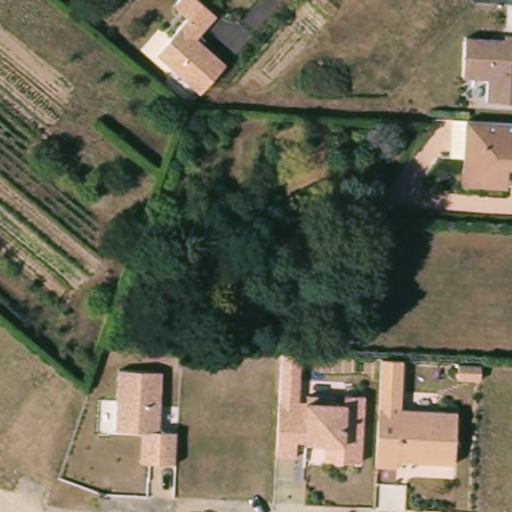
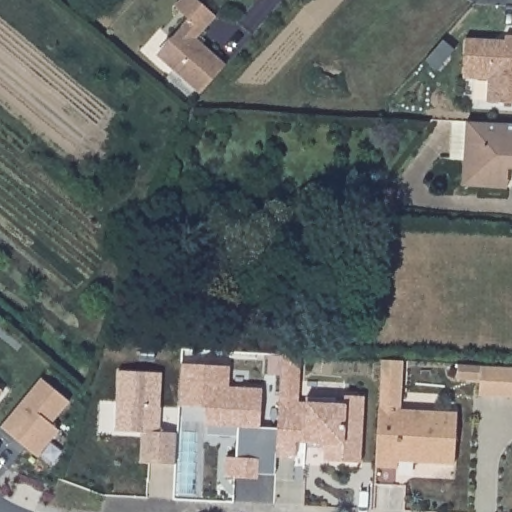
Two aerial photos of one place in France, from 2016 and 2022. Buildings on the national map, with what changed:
unchanged [(215,18),(195,40),(225,67),(199,95),(155,57),(188,21),(174,8),(182,0),(195,0),(215,18)]
unchanged [(512,30),(512,99),(492,97),(488,99),(489,75),(465,72),(467,35),(506,37),(508,30),(512,30)]
unchanged [(459,158),(442,157),(446,117),(462,117),(512,120),(512,164),(504,163),(502,184),(482,183),(457,182),(459,158)]
unchanged [(362,460),(326,458),(327,442),(296,440),(295,455),(275,455),(281,353),(302,353),(300,398),(345,400),(345,394),(365,395),(362,460)]
unchanged [(452,462),(398,459),(398,467),(376,465),(380,360),(402,360),(401,405),(456,410),(452,462)]
new [(225,456),(236,456),(237,426),(203,425),(204,406),(179,405),(180,361),(229,364),(227,384),(260,387),(257,426),(277,427),(275,455),(275,462),(258,462),(257,476),(224,474),(225,456)]
new [(455,364),(478,365),(477,365),(512,367),(512,397),(476,395),(477,380),(454,379),(455,364)]
unchanged [(159,430),(175,431),(175,463),(139,461),(140,431),(115,428),(117,369),(161,371),(159,430)]
new [(7,447),(0,441),(0,428),(39,380),(67,404),(49,426),(57,433),(35,459),(24,450),(19,456),(7,447)]
new [(1,395),(0,397),(0,394),(1,395)]

